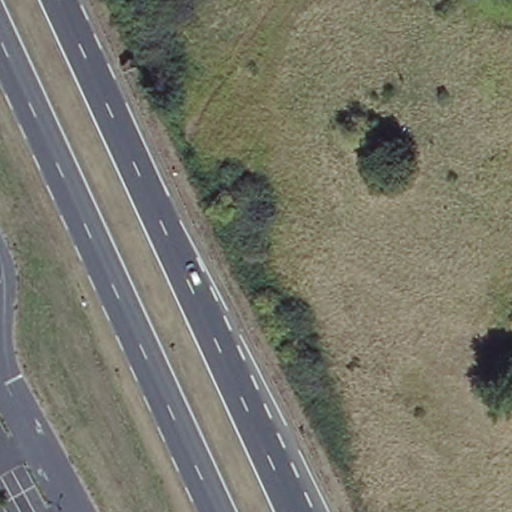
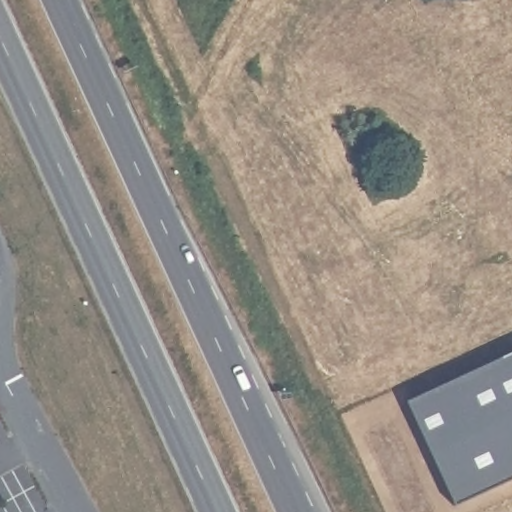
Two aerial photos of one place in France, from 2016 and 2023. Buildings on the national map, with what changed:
new [(512,478),(454,505),(406,402),(512,354),(512,478)]

